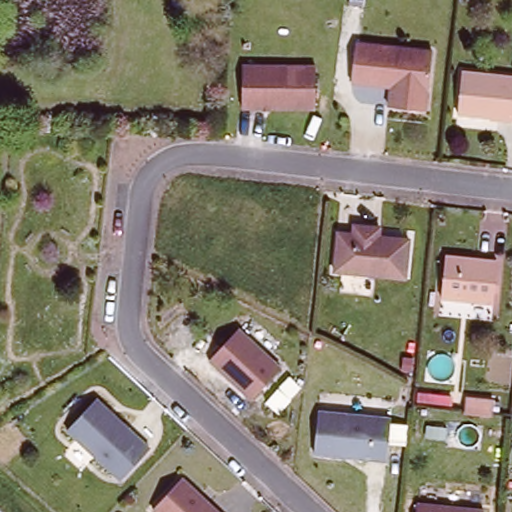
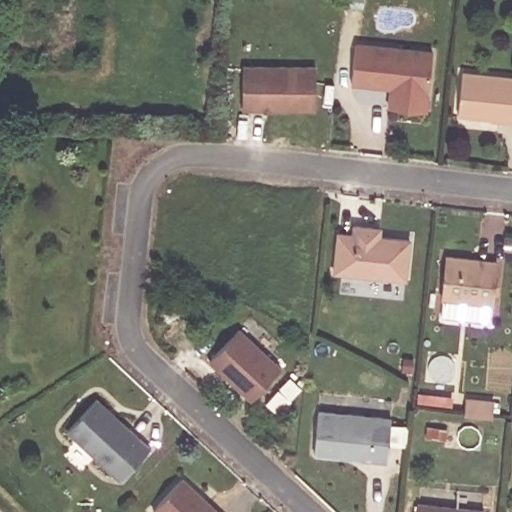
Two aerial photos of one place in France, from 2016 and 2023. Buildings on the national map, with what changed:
unchanged [(392,86),(352,80),(357,40),(432,50),(424,110),(390,106),(392,86)]
unchanged [(315,63),(315,106),(244,107),(243,64),(315,63)]
unchanged [(512,74),(512,117),(459,110),(464,69),(512,74)]
unchanged [(410,275),(335,267),(339,229),(355,231),(355,222),(375,224),(384,225),(382,234),(414,237),(410,275)]
unchanged [(445,300),(450,257),(499,262),(495,305),(445,300)]
unchanged [(280,366),(252,396),(210,355),(239,326),(280,366)]
unchanged [(140,436),(110,467),(69,428),(98,396),(140,436)]
unchanged [(491,422),(465,419),(467,405),(492,408),(491,422)]
unchanged [(394,417),(389,460),(313,452),(318,409),(394,417)]
unchanged [(221,512),(159,512),(154,506),(183,476),(221,512)]
unchanged [(487,511),(486,512),(419,512),(420,504),(487,511)]

